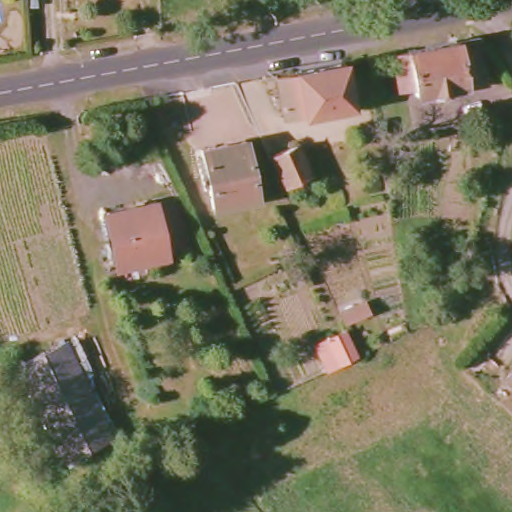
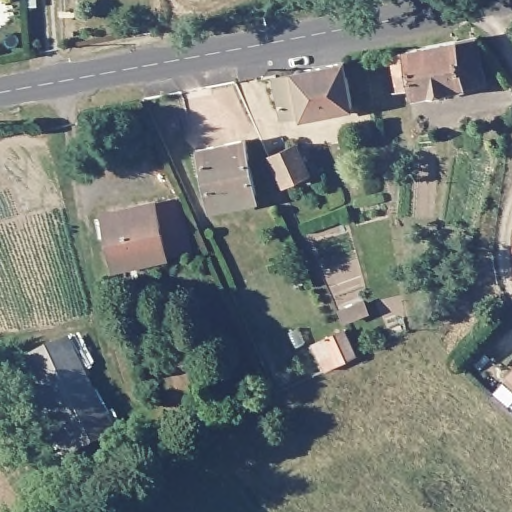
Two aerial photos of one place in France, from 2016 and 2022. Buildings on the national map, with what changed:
unchanged [(393,56),(407,53),(480,41),(486,84),(417,95),(415,87),(400,90),(393,56)]
unchanged [(352,107),(305,116),(303,112),(282,114),(275,74),(345,64),(352,107)]
unchanged [(200,150),(244,139),(257,200),(212,208),(200,150)]
unchanged [(308,174),(288,185),(273,155),(295,147),(297,150),(308,174)]
unchanged [(192,248),(122,266),(106,214),(177,197),(192,248)]
unchanged [(366,313),(347,321),(343,313),(364,305),(366,313)]
unchanged [(322,360),(335,355),(330,339),(340,335),(350,360),(326,371),(322,360)]
unchanged [(62,458),(20,364),(68,343),(110,434),(62,458)]
unchanged [(508,372),(512,367),(512,375),(508,372)]

